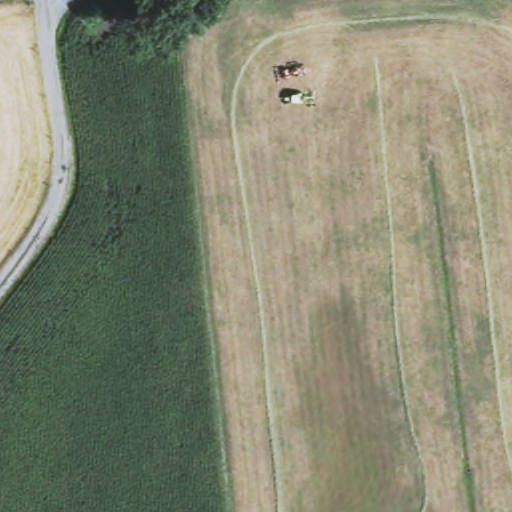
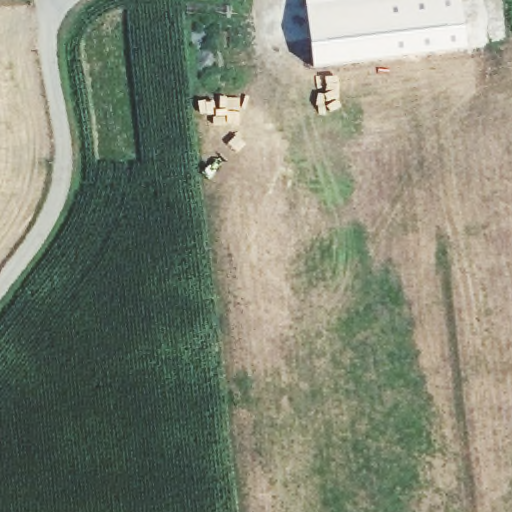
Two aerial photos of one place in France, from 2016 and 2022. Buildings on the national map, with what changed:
new [(317,72),(307,0),(462,0),(469,52),(317,72)]

